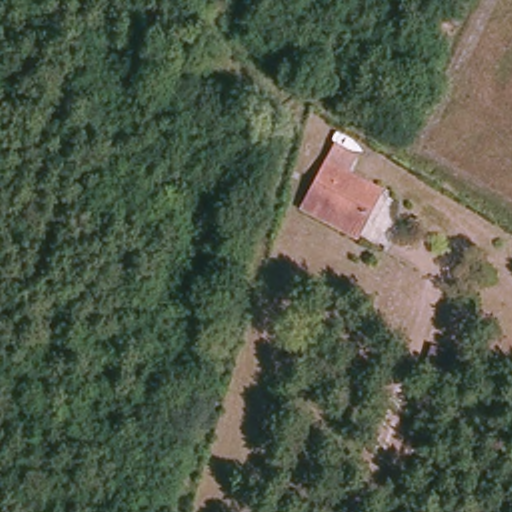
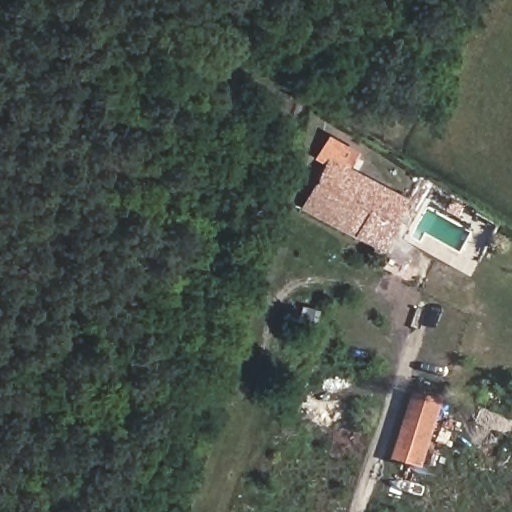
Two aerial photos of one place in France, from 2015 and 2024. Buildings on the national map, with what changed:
unchanged [(355,236),(301,206),(336,146),(355,156),(345,175),(370,190),(378,196),(366,217),(355,236)]
new [(423,468),(394,461),(417,391),(447,401),(423,468)]

